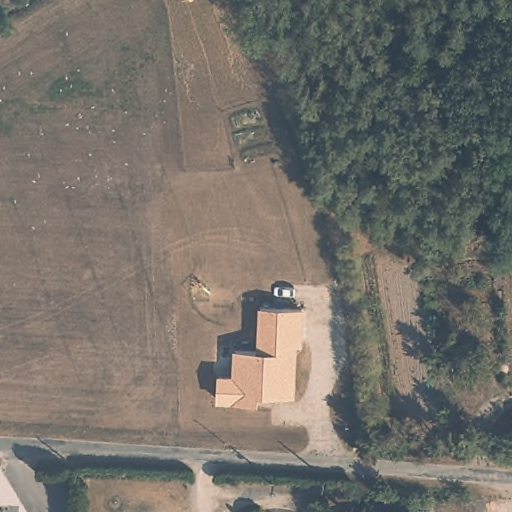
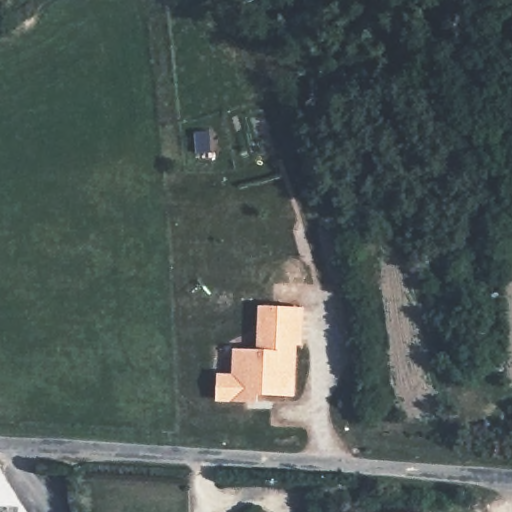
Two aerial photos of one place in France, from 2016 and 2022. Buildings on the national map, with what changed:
unchanged [(300,345),(297,346),(294,397),(258,397),(257,403),(216,401),(216,373),(231,374),(232,349),(255,349),(258,306),(303,308),(300,345)]

